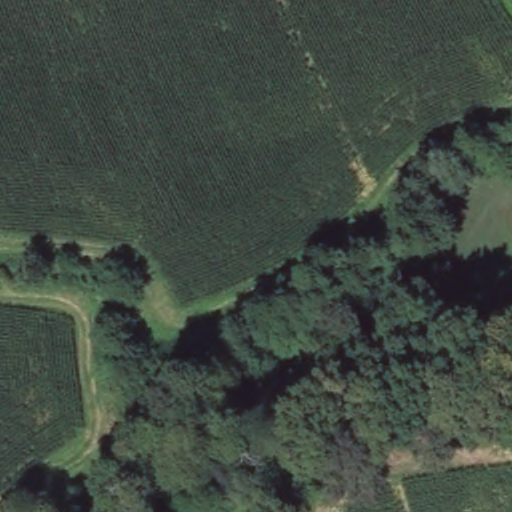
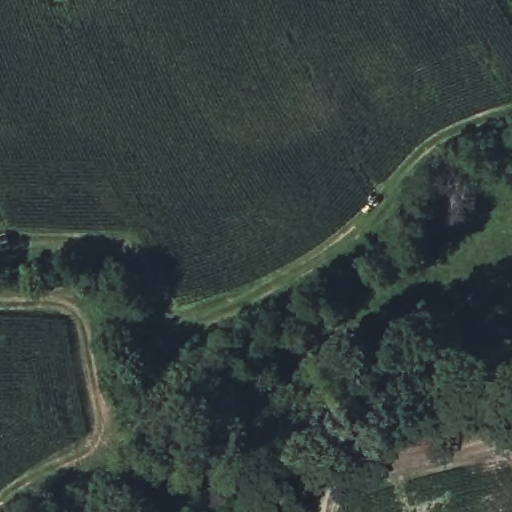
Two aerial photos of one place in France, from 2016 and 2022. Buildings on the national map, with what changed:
unchanged [(30,497),(35,512),(12,512),(11,509),(30,497)]

